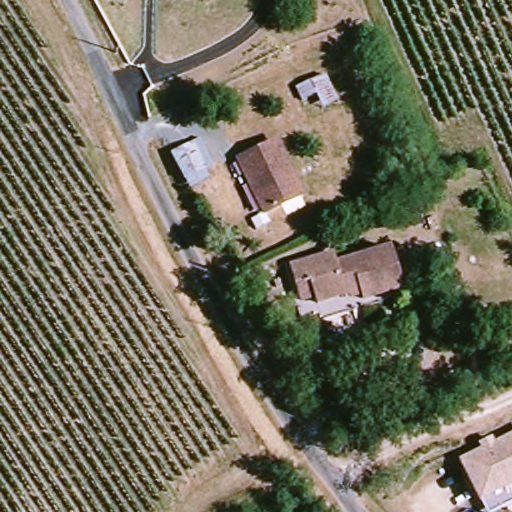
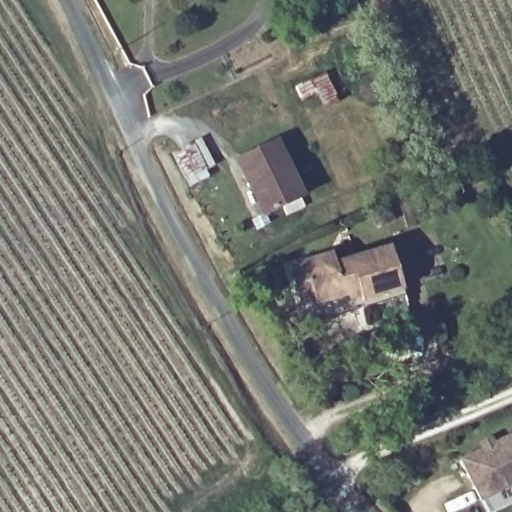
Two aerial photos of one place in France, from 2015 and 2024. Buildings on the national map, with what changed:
unchanged [(320,108),(315,95),(298,102),(292,86),(327,71),(338,100),(320,108)]
unchanged [(181,178),(170,153),(201,138),(214,165),(181,178)]
unchanged [(277,144),(296,200),(257,213),(238,158),(277,144)]
unchanged [(295,298),(286,262),(332,251),(335,262),(388,251),(399,297),(358,307),(357,300),(316,309),(313,304),(297,306),(295,298)]
unchanged [(483,496),(463,457),(485,446),(482,440),(493,435),(495,440),(512,432),(512,501),(491,512),(483,496)]

